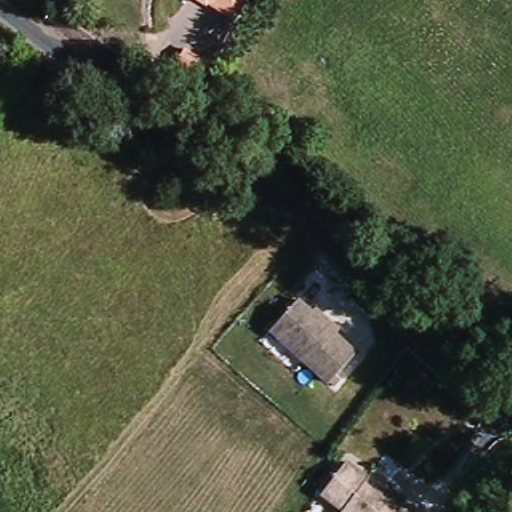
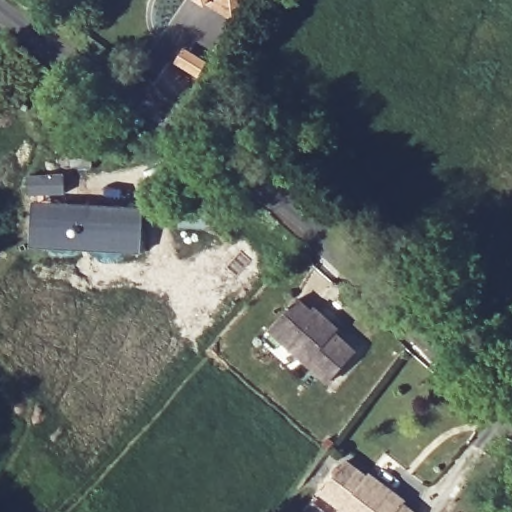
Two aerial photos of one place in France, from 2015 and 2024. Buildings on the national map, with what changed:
unchanged [(216,10),(201,0),(223,0),(216,10)]
unchanged [(202,65),(195,79),(173,65),(182,52),(202,65)]
new [(63,172),(64,194),(24,194),(23,174),(63,172)]
new [(29,200),(143,206),(140,253),(64,252),(26,248),(29,200)]
unchanged [(330,379),(273,326),(299,296),(313,308),(316,305),(329,315),(341,326),(337,330),(358,349),(330,379)]
unchanged [(342,462),(363,478),(365,475),(380,486),(392,495),(401,503),(400,506),(407,512),(343,512),(318,493),(342,462)]

